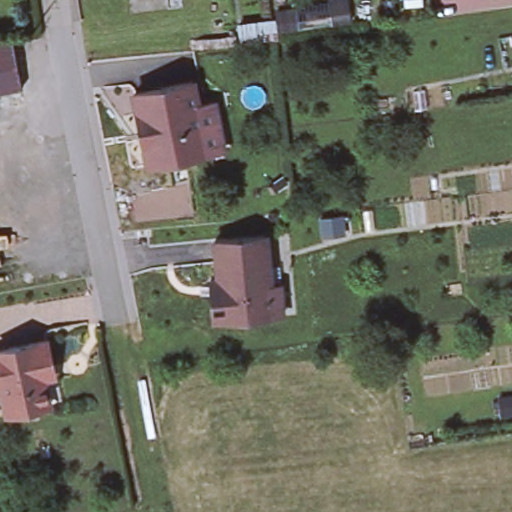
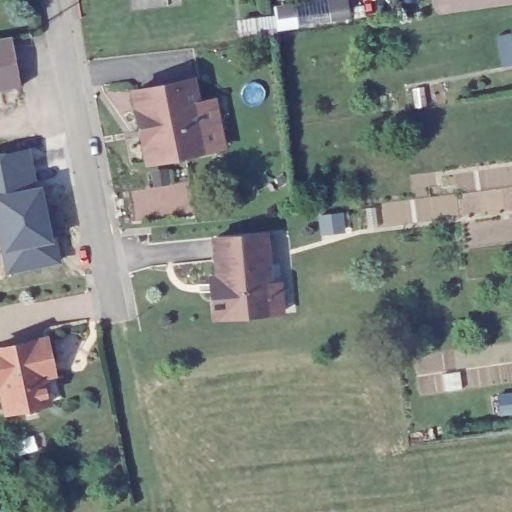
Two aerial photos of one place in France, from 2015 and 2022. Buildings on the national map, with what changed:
unchanged [(172,4),(139,9),(138,0),(171,0),(172,4)]
unchanged [(22,85),(0,89),(0,40),(13,37),(22,85)]
unchanged [(198,76),(203,99),(219,95),(229,141),(153,156),(139,87),(198,76)]
new [(38,187),(43,187),(53,243),(58,242),(63,264),(6,276),(0,239),(0,156),(31,151),(38,187)]
unchanged [(216,272),(223,272),(219,234),(271,230),(276,280),(286,279),(288,297),(288,307),(219,313),(219,306),(216,272)]
unchanged [(54,370),(44,372),(50,400),(6,409),(0,380),(0,347),(41,338),(47,337),(54,370)]

